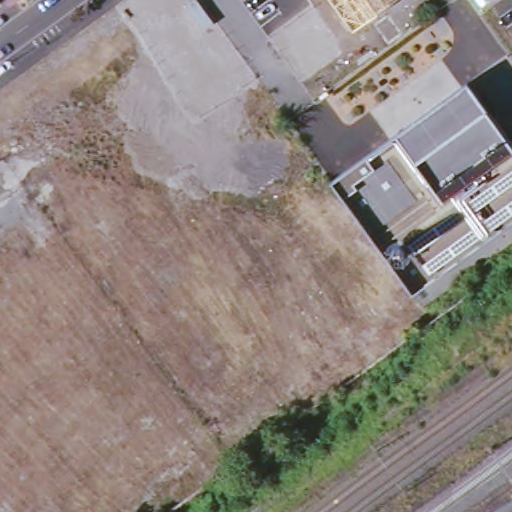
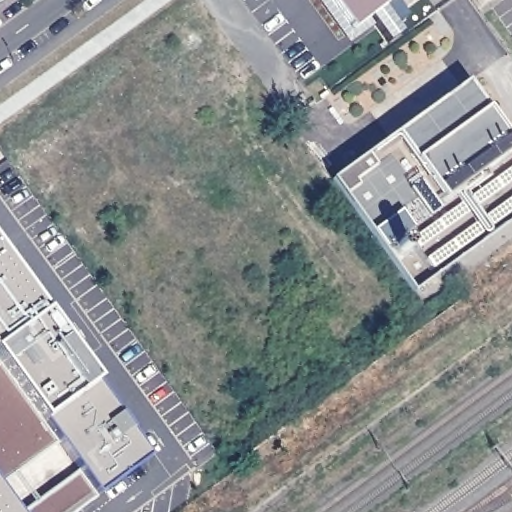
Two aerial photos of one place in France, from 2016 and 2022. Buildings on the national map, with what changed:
unchanged [(5,1),(0,2),(0,0),(4,0),(5,1)]
unchanged [(356,30),(335,0),(397,0),(356,30)]
unchanged [(475,0),(490,0),(480,7),(475,0)]
unchanged [(512,142),(512,222),(413,294),(332,181),(469,83),(512,142)]
new [(74,512),(0,512),(0,255),(44,315),(97,386),(149,458),(98,495),(74,512)]

